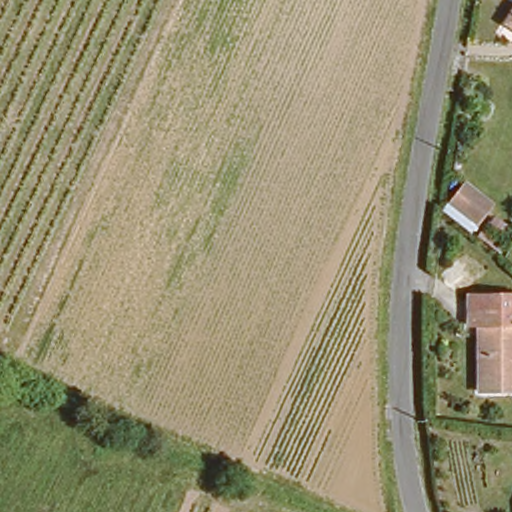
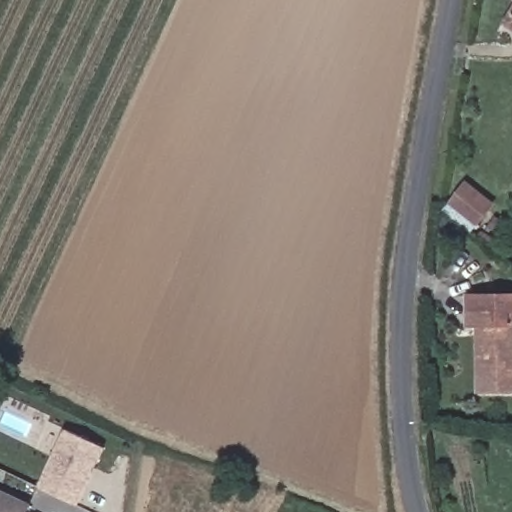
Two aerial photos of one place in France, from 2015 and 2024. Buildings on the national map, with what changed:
unchanged [(512,4),(512,23),(504,17),(512,4)]
unchanged [(492,206),(478,225),(452,206),(466,186),(492,206)]
unchanged [(472,317),(461,316),(461,295),(512,292),(512,392),(474,392),(472,317)]
new [(66,428),(107,447),(80,506),(39,486),(66,428)]
new [(29,512),(0,512),(0,489),(32,504),(29,512)]

